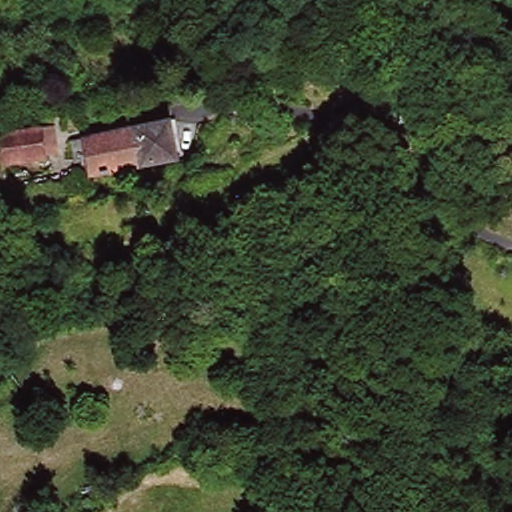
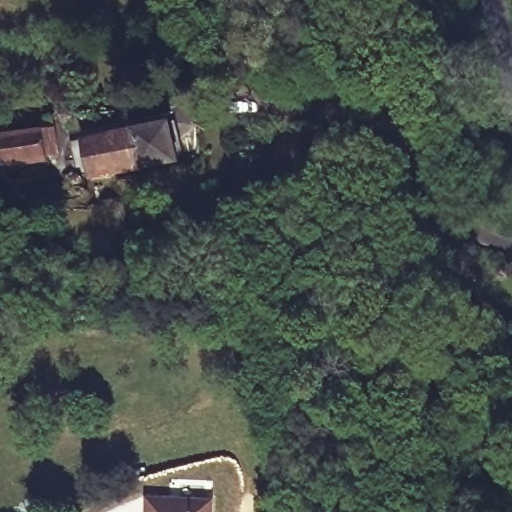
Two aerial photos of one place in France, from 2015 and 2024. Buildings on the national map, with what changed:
unchanged [(47,156),(47,160),(3,164),(0,133),(46,128),(45,121),(56,120),(57,127),(60,155),(47,156)]
unchanged [(170,120),(177,157),(90,175),(83,139),(170,120)]
unchanged [(127,249),(128,230),(157,231),(155,250),(127,249)]
new [(153,497),(218,499),(218,512),(152,512),(153,497)]

